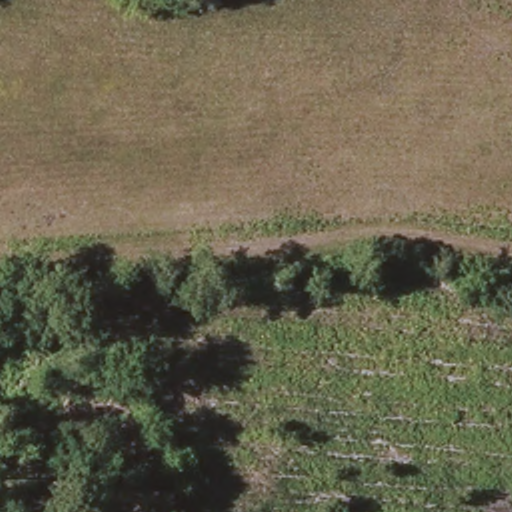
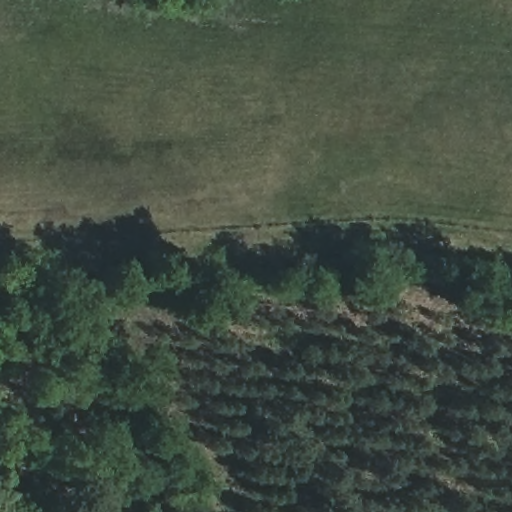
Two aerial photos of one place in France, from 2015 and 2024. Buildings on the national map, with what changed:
[]

